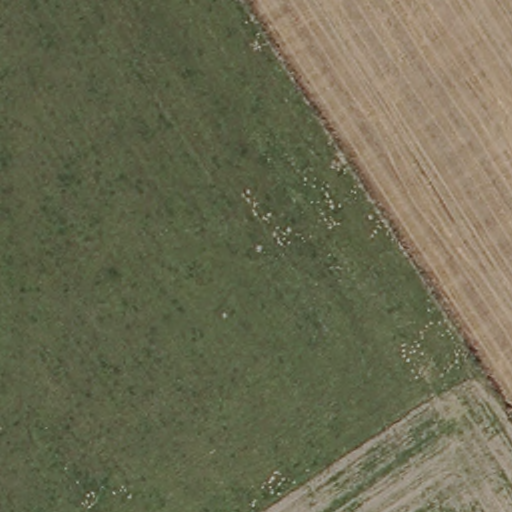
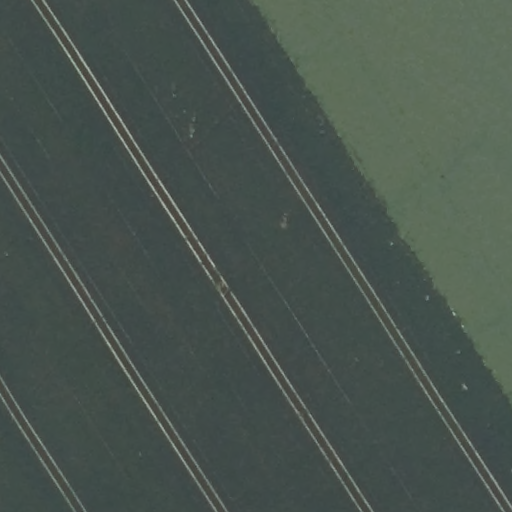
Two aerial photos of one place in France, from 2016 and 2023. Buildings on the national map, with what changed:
[]

